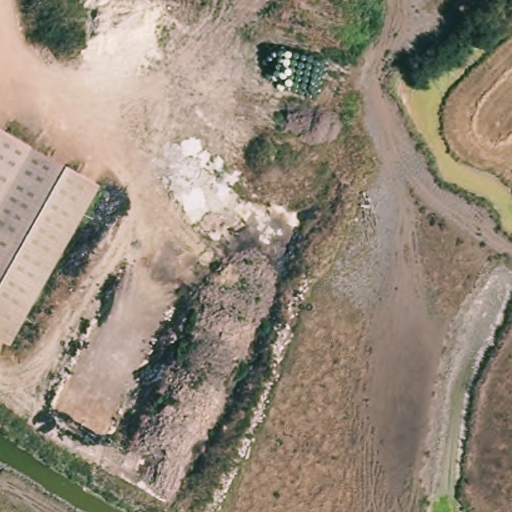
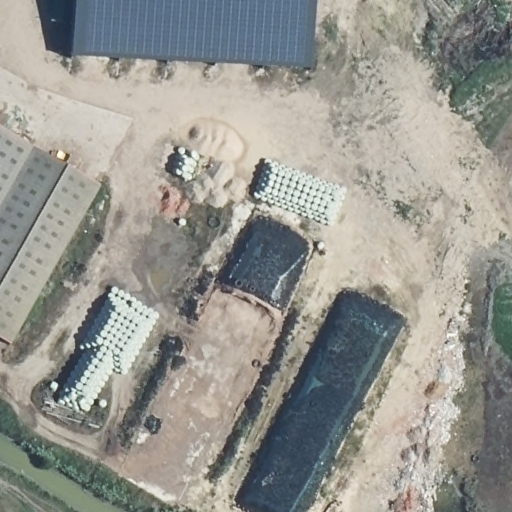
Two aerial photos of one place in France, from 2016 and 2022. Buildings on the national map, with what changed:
new [(71,56),(74,0),(313,0),(310,70),(71,56)]
unchanged [(7,346),(0,341),(0,133),(97,187),(7,346)]

